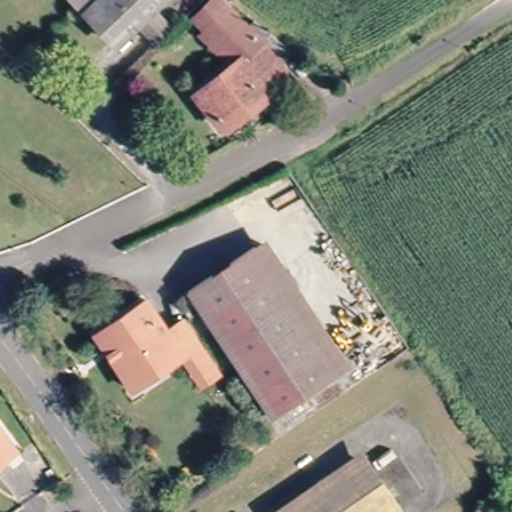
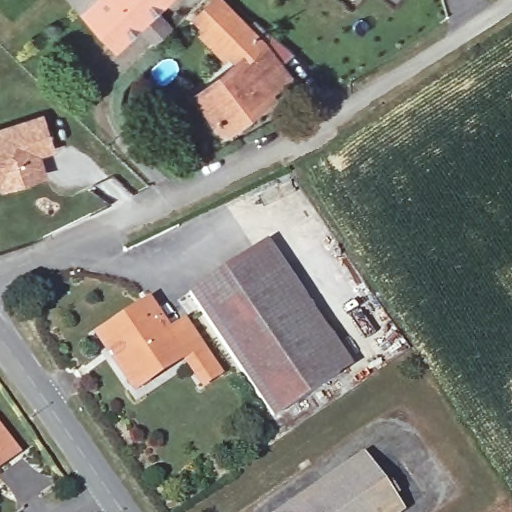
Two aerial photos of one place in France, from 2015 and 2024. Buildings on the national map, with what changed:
unchanged [(113,47),(83,14),(81,16),(67,0),(163,0),(113,47)]
unchanged [(194,92),(220,72),(235,61),(229,54),(225,57),(223,55),(218,60),(193,33),(199,28),(189,18),(209,0),(215,0),(222,7),(225,9),(252,33),(257,29),(264,37),(267,35),(290,55),(277,65),(287,79),(268,93),(221,129),(194,92)]
new [(41,154),(47,175),(1,189),(0,185),(0,128),(46,113),(56,149),(41,154)]
unchanged [(257,244),(265,238),(348,363),(339,369),(257,244)]
unchanged [(264,419),(228,364),(181,293),(257,244),(339,369),(264,419)]
unchanged [(200,387),(188,367),(183,359),(179,354),(129,387),(110,358),(94,333),(101,329),(144,301),(165,333),(182,322),(199,349),(216,376),(200,387)]
unchanged [(17,456),(0,469),(0,432),(17,456)]
unchanged [(360,464),(366,474),(393,512),(290,512),(346,474),(360,464)]

